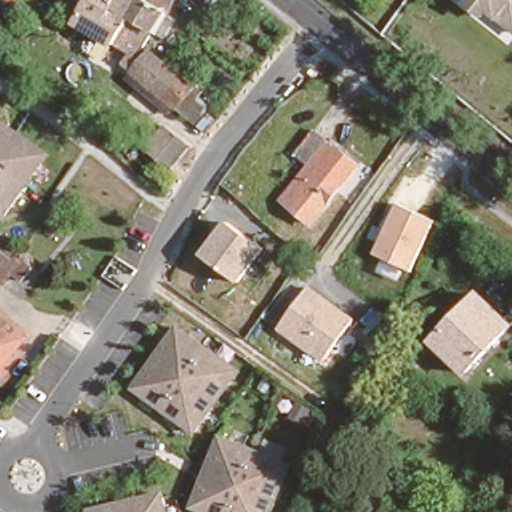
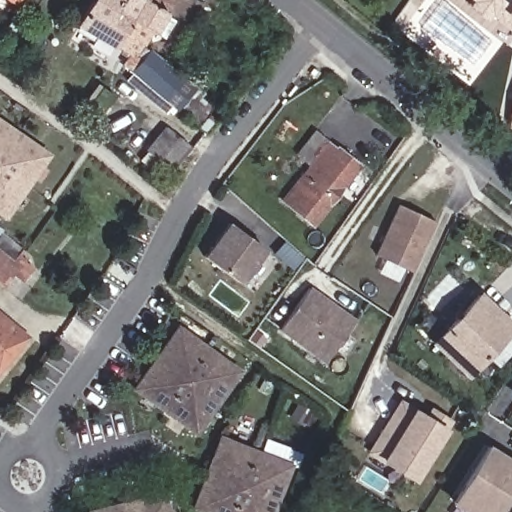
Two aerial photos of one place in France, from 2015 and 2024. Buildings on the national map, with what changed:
unchanged [(135,62),(113,50),(113,51),(75,30),(94,0),(147,0),(131,26),(153,39),(143,51),(135,62)]
unchanged [(174,27),(164,45),(153,39),(131,26),(147,0),(177,0),(164,20),(174,27)]
unchanged [(483,13),(469,2),(470,0),(474,0),(512,0),(512,30),(486,9),(483,13)]
unchanged [(198,128),(177,114),(175,115),(174,114),(167,121),(123,85),(129,78),(126,76),(135,62),(143,51),(194,91),(190,96),(210,112),(198,128)]
new [(509,126),(512,108),(512,127),(509,126)]
unchanged [(217,125),(206,137),(199,131),(209,119),(217,125)]
unchanged [(60,146),(45,165),(39,160),(30,173),(1,215),(0,215),(0,125),(25,142),(35,128),(60,146)]
unchanged [(190,151),(172,175),(146,154),(165,130),(190,151)]
unchanged [(317,224),(286,201),(314,165),(300,154),(319,131),(363,166),(317,224)]
unchanged [(411,270),(374,254),(397,205),(434,221),(411,270)]
unchanged [(241,285),(201,258),(229,220),(267,250),(241,285)]
unchanged [(41,272),(26,291),(18,285),(9,296),(0,290),(0,250),(6,243),(41,272)]
unchanged [(324,361),(279,330),(309,286),(355,318),(324,361)]
unchanged [(510,324),(465,373),(432,342),(478,293),(510,324)]
unchanged [(0,366),(0,315),(25,335),(0,366)]
unchanged [(196,430),(135,387),(178,326),(239,370),(196,430)]
new [(400,399),(427,414),(431,407),(452,420),(414,482),(365,451),(400,399)]
unchanged [(273,512),(210,512),(195,506),(223,436),(292,464),(273,512)]
new [(512,459),(512,486),(496,512),(464,512),(448,503),(487,443),(512,459)]
unchanged [(168,512),(91,512),(90,509),(164,493),(168,512)]

